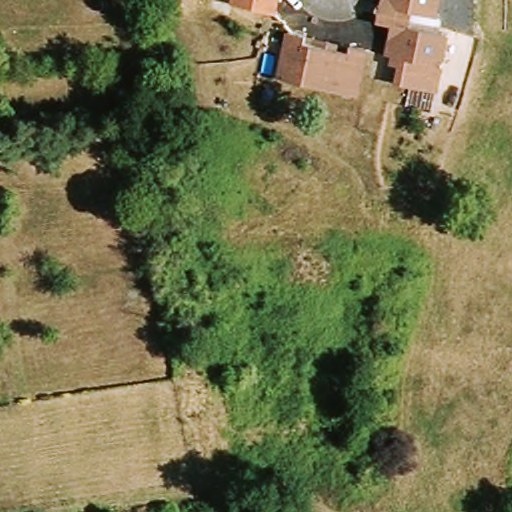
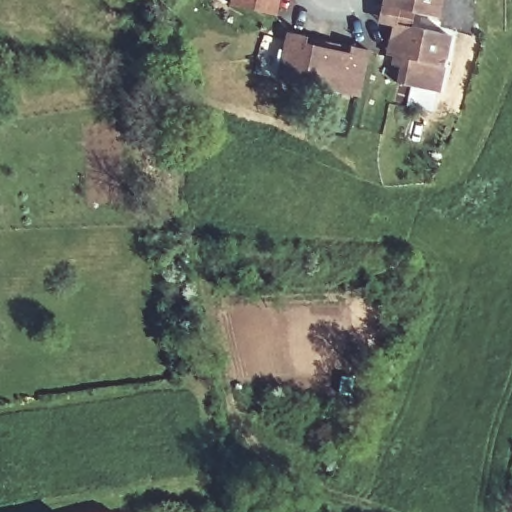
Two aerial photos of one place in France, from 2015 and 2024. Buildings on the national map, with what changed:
unchanged [(272,14),(227,5),(229,0),(275,0),(272,14)]
unchanged [(435,15),(380,4),(381,0),(438,0),(435,15)]
unchanged [(450,33),(440,90),(402,84),(407,55),(393,53),(397,25),(450,33)]
unchanged [(279,85),(287,30),(364,44),(360,82),(320,75),(317,92),(279,85)]

